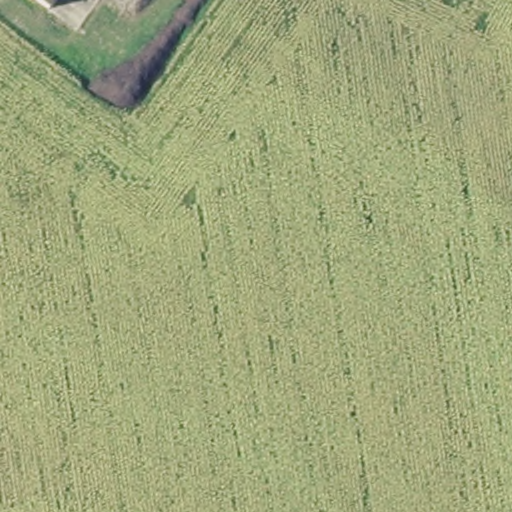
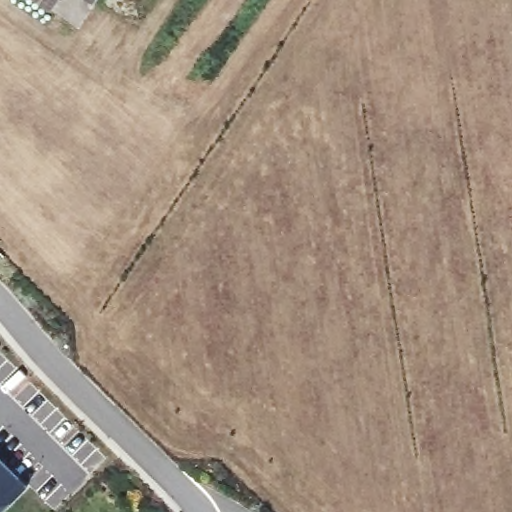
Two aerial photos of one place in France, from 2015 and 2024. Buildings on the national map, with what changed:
unchanged [(50,10),(36,0),(57,0),(50,10)]
unchanged [(90,2),(88,0),(92,0),(90,2)]
new [(12,502),(2,512),(0,512),(0,458),(28,486),(12,502)]

